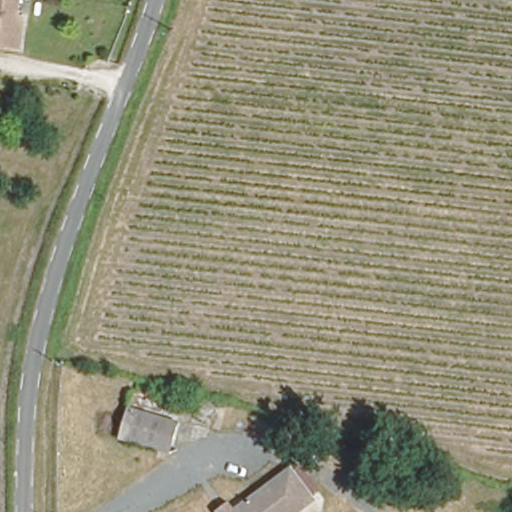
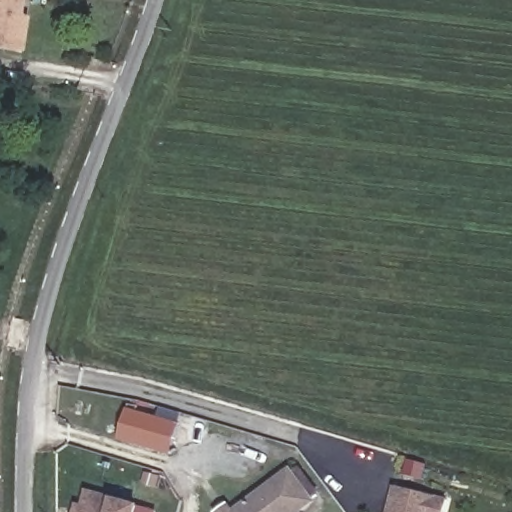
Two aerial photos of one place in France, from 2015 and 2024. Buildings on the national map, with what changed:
unchanged [(0,47),(0,0),(26,0),(18,50),(0,47)]
unchanged [(174,415),(162,458),(113,443),(126,400),(174,415)]
unchanged [(290,471),(312,501),(297,512),(233,512),(290,471)]
new [(445,512),(388,512),(394,485),(448,498),(445,512)]
new [(156,512),(76,512),(77,505),(83,506),(87,489),(114,497),(141,505),(157,509),(156,512)]

